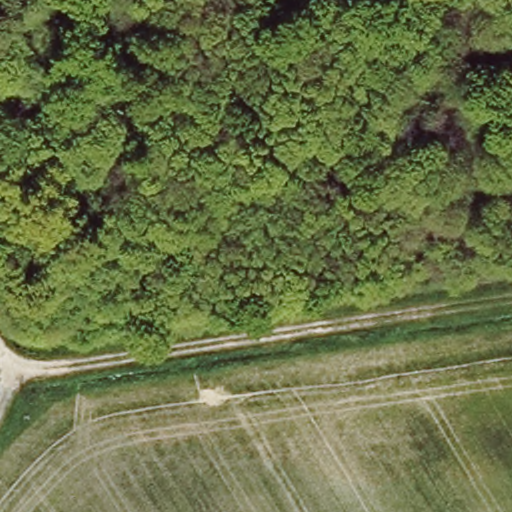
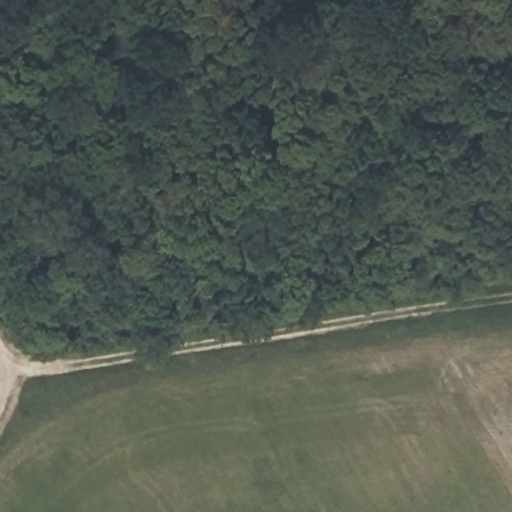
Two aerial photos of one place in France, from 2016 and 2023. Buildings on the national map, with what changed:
[]

